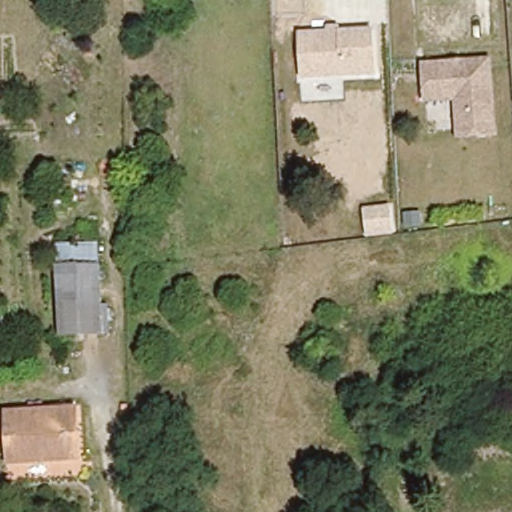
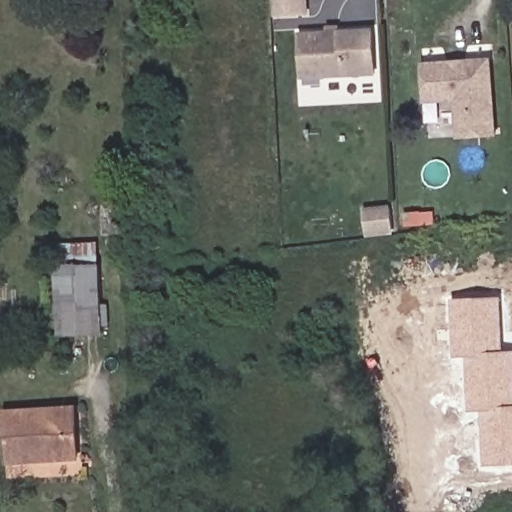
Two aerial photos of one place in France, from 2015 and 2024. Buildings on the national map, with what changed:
new [(274,17),(273,0),(305,0),(306,15),(274,17)]
unchanged [(373,30),(375,74),(303,77),(301,34),(373,30)]
unchanged [(454,98),(453,98),(441,99),(425,100),(423,85),(421,64),(451,61),(488,57),(495,131),(458,135),(454,98)]
unchanged [(394,209),(396,230),(369,233),(367,212),(394,209)]
unchanged [(102,252),(104,325),(61,326),(59,253),(102,252)]
new [(482,411),(471,411),(469,357),(455,357),(453,299),(504,297),(506,351),(512,351),(512,465),(485,466),(482,411)]
unchanged [(11,412),(72,409),(74,456),(14,459),(11,412)]

